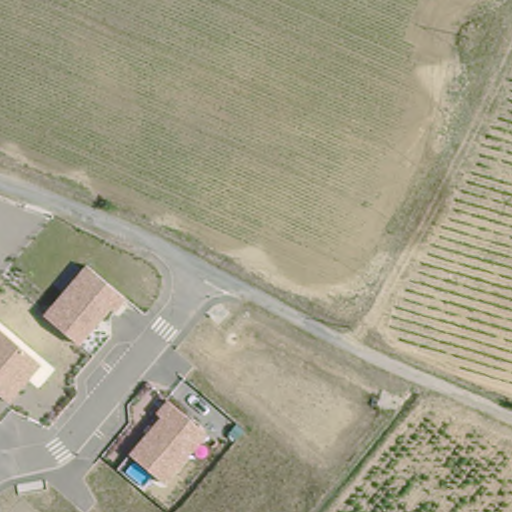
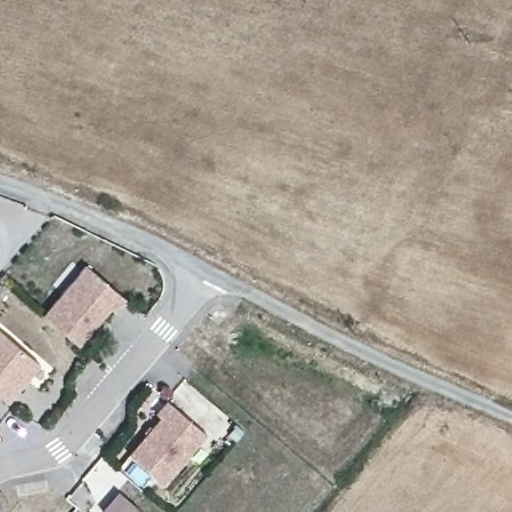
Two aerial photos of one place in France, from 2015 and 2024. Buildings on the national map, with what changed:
unchanged [(43,315),(85,265),(126,298),(115,312),(110,308),(80,345),(43,315)]
unchanged [(0,331),(40,364),(10,402),(0,394),(0,331)]
unchanged [(129,454),(160,416),(156,412),(166,400),(206,435),(165,484),(129,454)]
new [(118,489),(137,507),(132,512),(107,512),(102,508),(118,489)]

